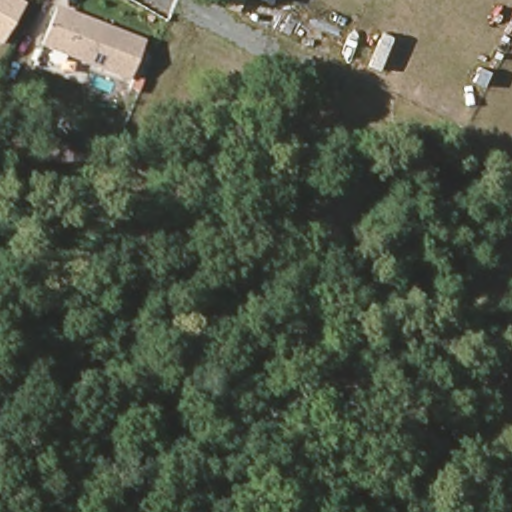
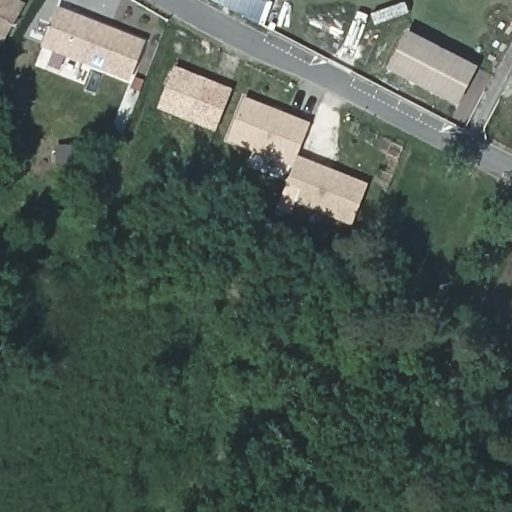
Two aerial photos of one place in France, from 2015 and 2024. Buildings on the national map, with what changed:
unchanged [(26,4),(1,44),(0,43),(0,0),(20,0),(26,4)]
new [(261,24),(261,26),(233,17),(235,11),(216,4),(217,0),(269,0),(261,24)]
unchanged [(147,40),(131,82),(41,46),(58,5),(147,40)]
new [(456,106),(386,69),(407,29),(478,65),(456,106)]
new [(232,89),(214,131),(157,109),(175,66),(232,89)]
new [(309,122),(294,164),(228,139),(244,97),(309,122)]
new [(352,224),(297,200),(292,214),(279,209),(299,155),(368,183),(352,224)]

